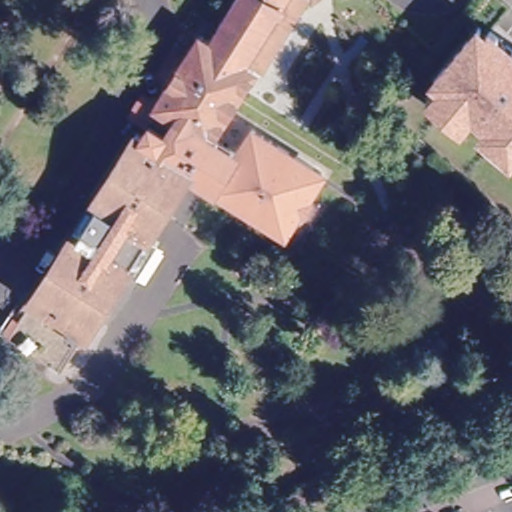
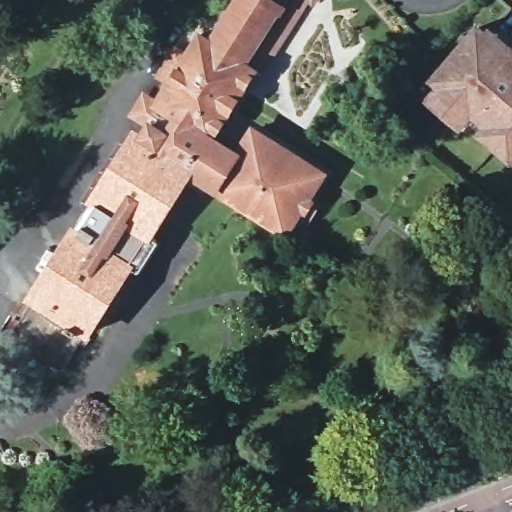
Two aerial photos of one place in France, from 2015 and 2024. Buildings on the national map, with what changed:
unchanged [(266,71),(260,68),(217,137),(242,152),(257,128),(323,169),(285,227),(225,189),(189,167),(143,131),(150,121),(132,110),(145,91),(156,98),(170,77),(159,70),(175,44),(186,51),(200,29),(210,36),(233,0),(311,0),(266,71)]
unchanged [(316,1),(315,0),(317,0),(316,1)]
unchanged [(483,127),(472,119),(462,131),(426,102),(437,87),(430,80),(478,20),(489,30),(492,26),(512,44),(512,164),(477,134),(483,127)]
unchanged [(143,131),(189,167),(149,230),(157,235),(138,265),(130,260),(62,367),(9,333),(76,226),(80,228),(97,199),(94,197),(137,128),(143,131)]

